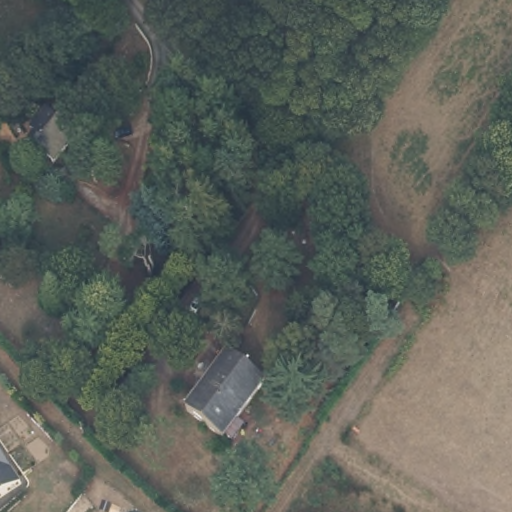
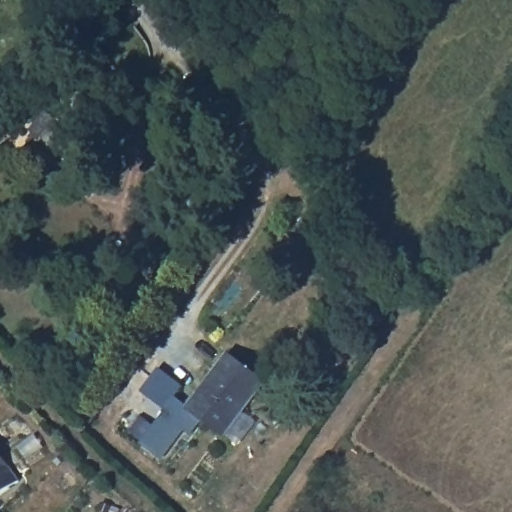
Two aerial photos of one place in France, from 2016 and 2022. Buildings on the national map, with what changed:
unchanged [(55,147),(44,139),(59,119),(70,127),(73,124),(108,77),(125,90),(64,169),(54,161),(48,157),(55,147)]
unchanged [(221,442),(185,413),(229,358),(264,387),(221,442)]
new [(194,436),(187,430),(164,458),(141,443),(166,411),(141,392),(161,367),(185,386),(176,396),(190,407),(185,413),(201,426),(194,436)]
unchanged [(0,495),(0,455),(19,482),(0,495)]

